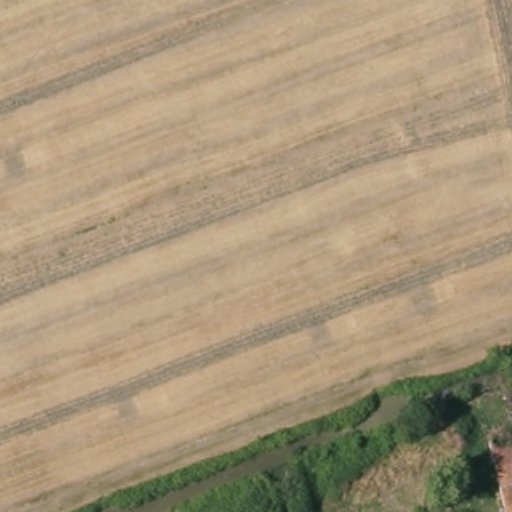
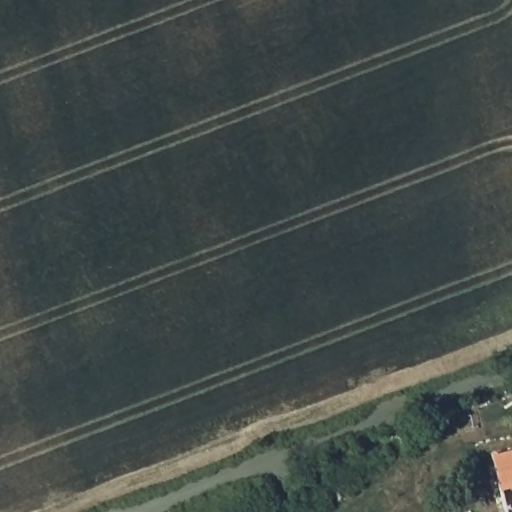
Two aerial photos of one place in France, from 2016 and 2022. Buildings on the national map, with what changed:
unchanged [(512,512),(504,512),(484,441),(512,434),(512,512)]

